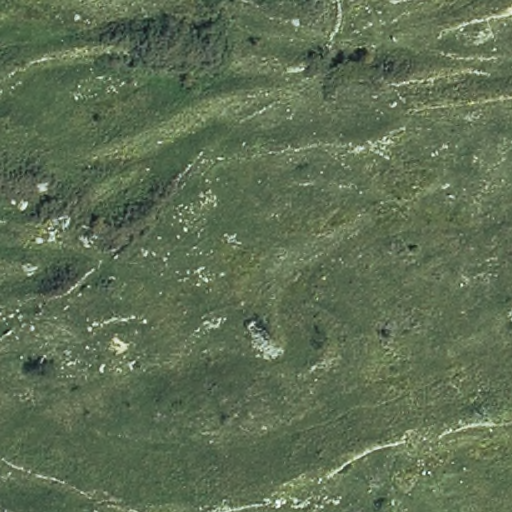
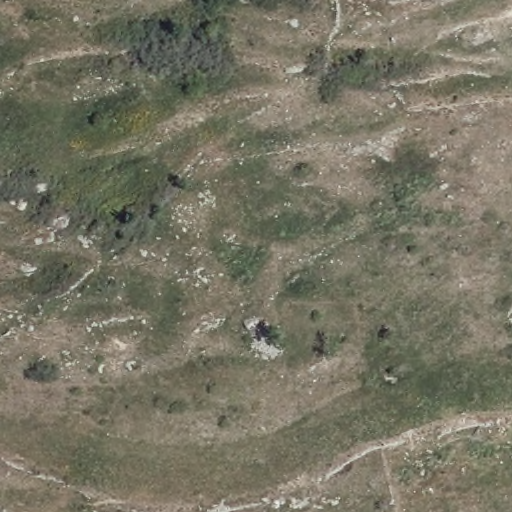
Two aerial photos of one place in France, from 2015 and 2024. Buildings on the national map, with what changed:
[]

